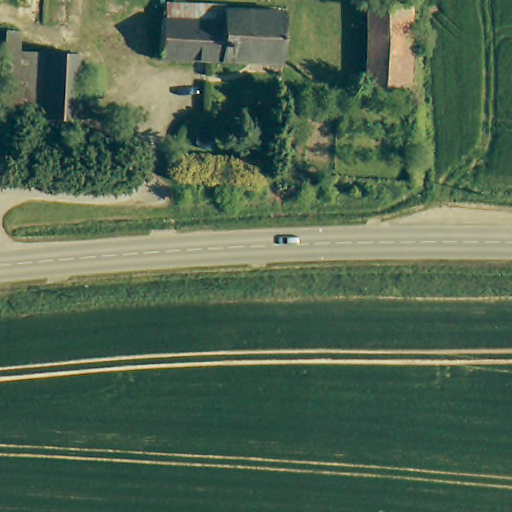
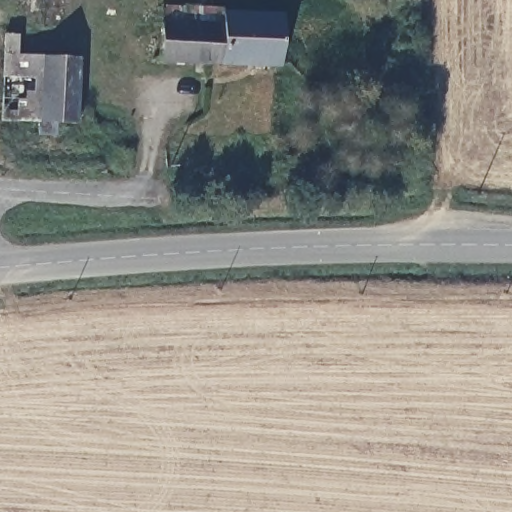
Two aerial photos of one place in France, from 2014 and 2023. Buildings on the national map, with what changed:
unchanged [(168,5),(230,7),(232,12),(288,13),(286,65),(216,61),(166,59),(168,5)]
unchanged [(390,8),(408,8),(417,9),(414,86),(372,84),(372,7),(390,8)]
unchanged [(5,121),(5,55),(6,35),(20,36),(20,57),(41,59),(41,123),(5,121)]
unchanged [(74,58),(74,124),(41,123),(41,59),(74,58)]

